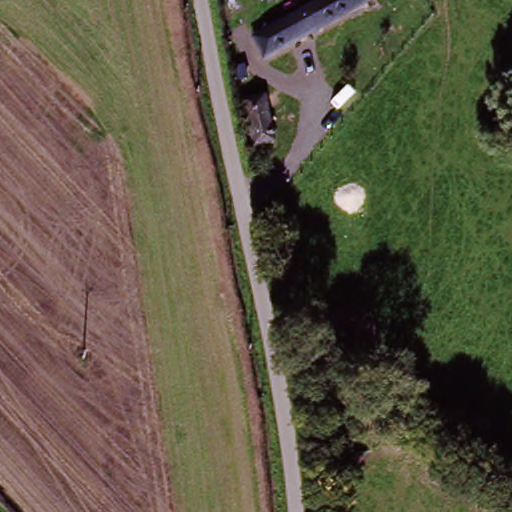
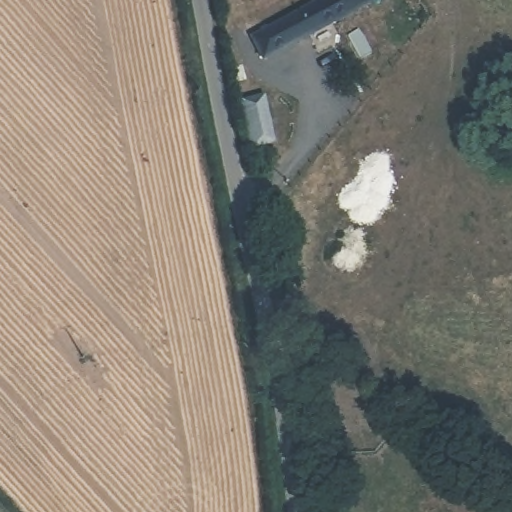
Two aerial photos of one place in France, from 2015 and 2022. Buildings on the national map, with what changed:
unchanged [(370,4),(259,61),(248,39),(324,0),(368,0),(370,4)]
unchanged [(247,151),(239,106),(258,102),(267,147),(247,151)]

